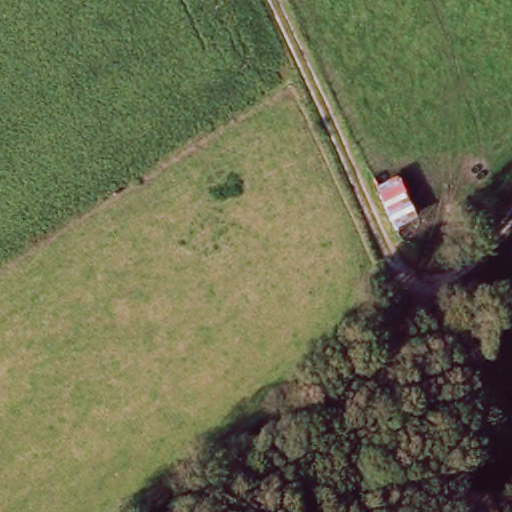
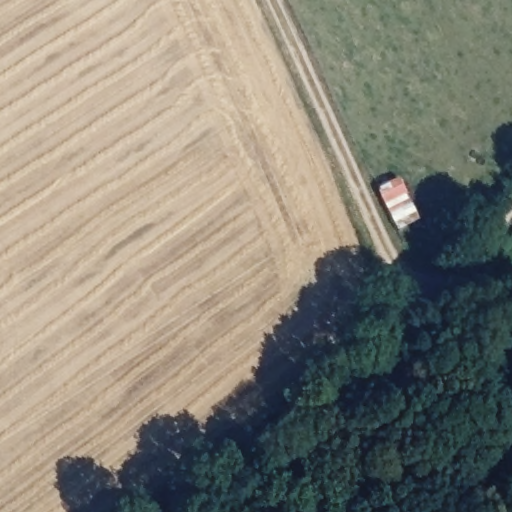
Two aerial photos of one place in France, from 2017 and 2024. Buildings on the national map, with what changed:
unchanged [(417,217),(393,229),(375,188),(400,176),(417,217)]

